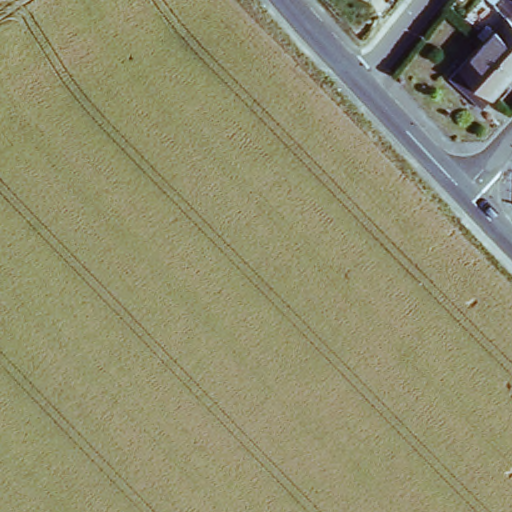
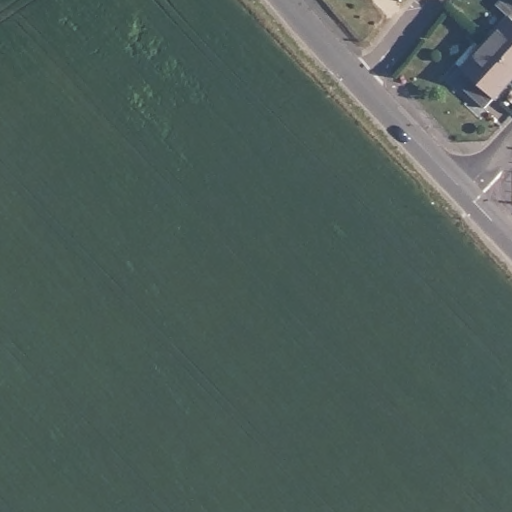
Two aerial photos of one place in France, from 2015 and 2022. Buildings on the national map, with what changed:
unchanged [(506,11),(496,0),(512,0),(512,62),(483,35),(506,11)]
unchanged [(450,71),(483,35),(512,62),(512,70),(483,102),(450,71)]

